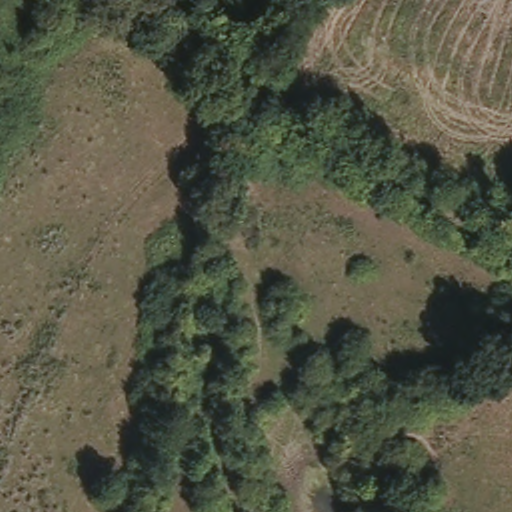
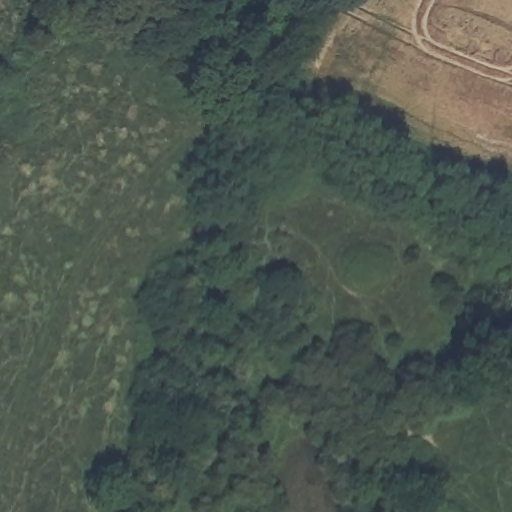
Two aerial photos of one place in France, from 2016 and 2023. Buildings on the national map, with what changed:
unchanged [(231,180),(250,184),(245,209),(227,205),(231,180)]

